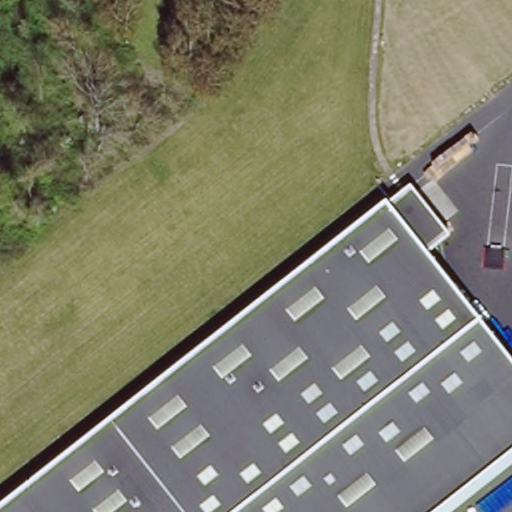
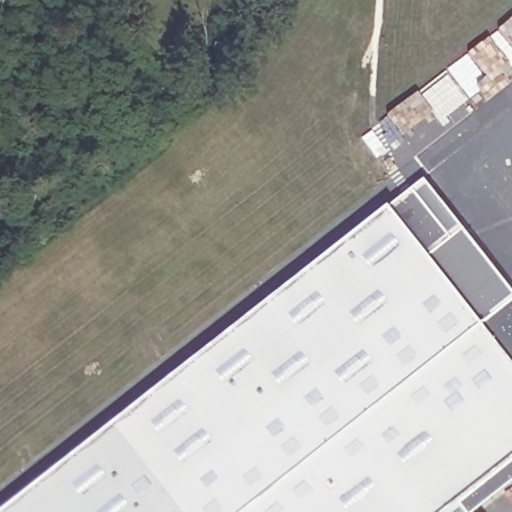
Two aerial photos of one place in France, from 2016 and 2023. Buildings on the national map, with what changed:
unchanged [(425,258),(512,368),(512,459),(445,512),(3,512),(113,426),(388,210),(411,189),(451,239),(425,258)]

